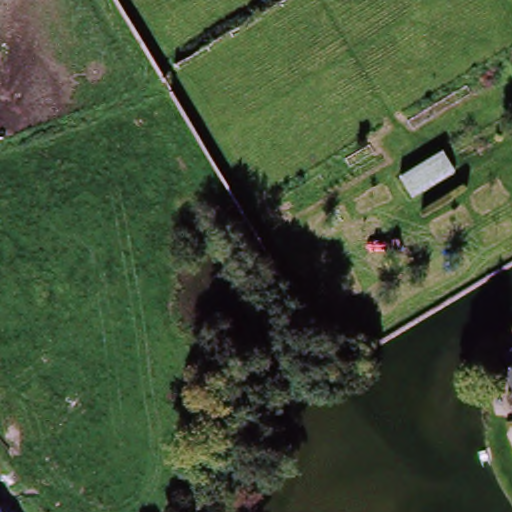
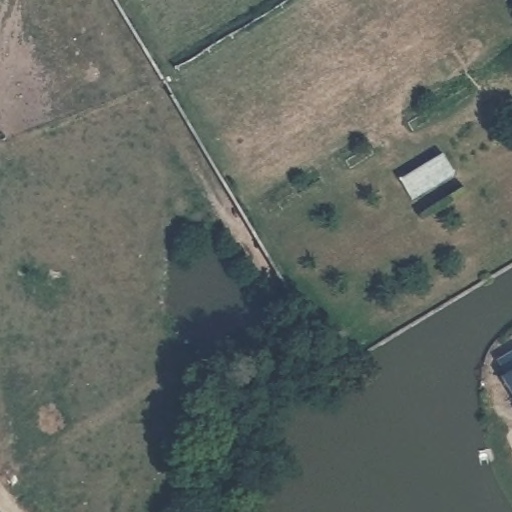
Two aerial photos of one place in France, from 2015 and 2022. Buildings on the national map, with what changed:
unchanged [(413,204),(398,180),(443,153),(456,175),(413,204)]
unchanged [(489,345),(512,331),(512,392),(492,362),(497,359),(489,345)]
unchanged [(512,398),(512,399),(511,399),(512,398)]

